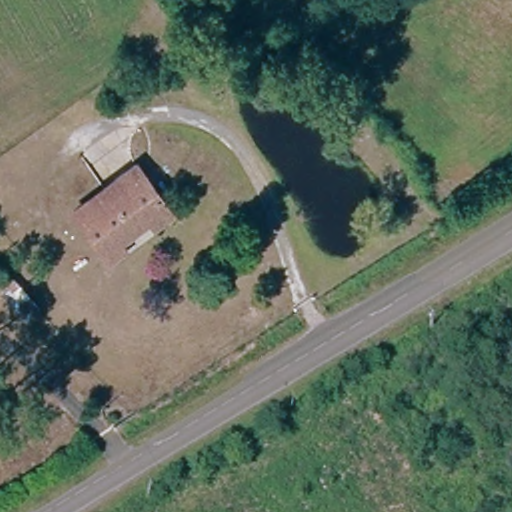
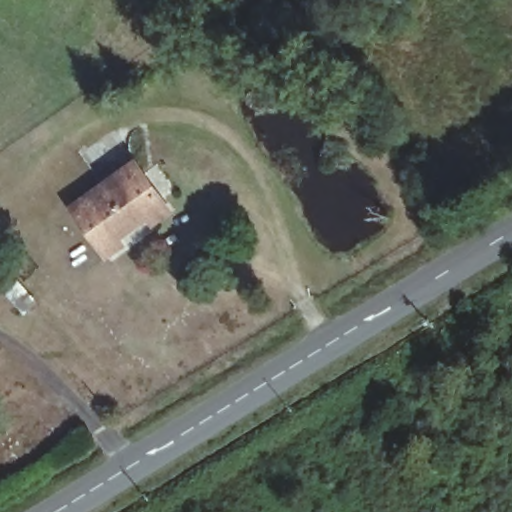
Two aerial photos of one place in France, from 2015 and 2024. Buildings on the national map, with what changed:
unchanged [(119,239),(124,247),(107,258),(72,207),(136,162),(165,204),(147,216),(148,219),(119,239)]
unchanged [(35,306),(21,321),(0,294),(0,283),(10,276),(35,306)]

